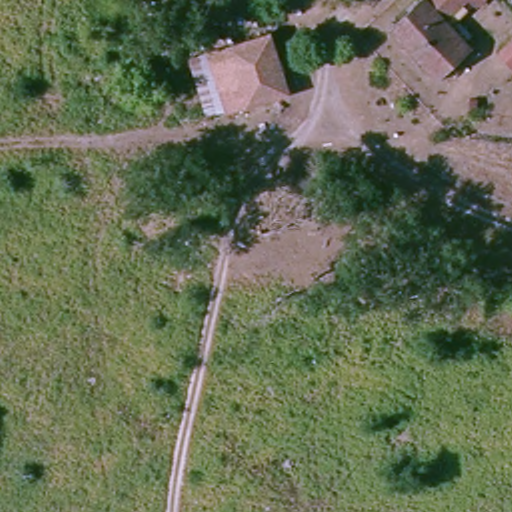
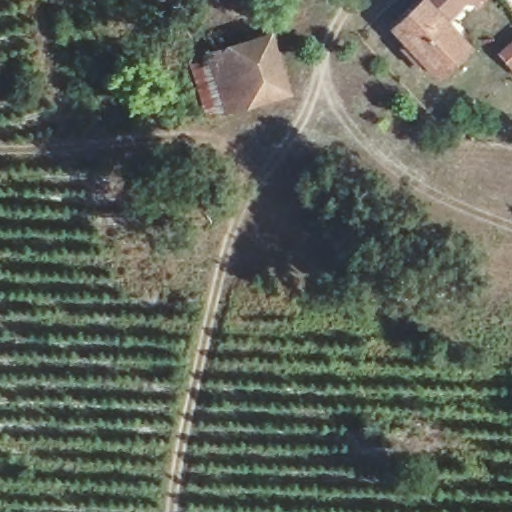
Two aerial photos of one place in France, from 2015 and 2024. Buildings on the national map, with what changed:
unchanged [(436,74),(420,59),(417,63),(399,44),(405,39),(391,23),(416,0),(431,0),(442,12),(471,43),(436,74)]
unchanged [(442,12),(431,0),(455,0),(442,12)]
unchanged [(502,48),(512,39),(512,59),(502,48)]
unchanged [(213,116),(199,55),(264,42),(277,101),(213,116)]

